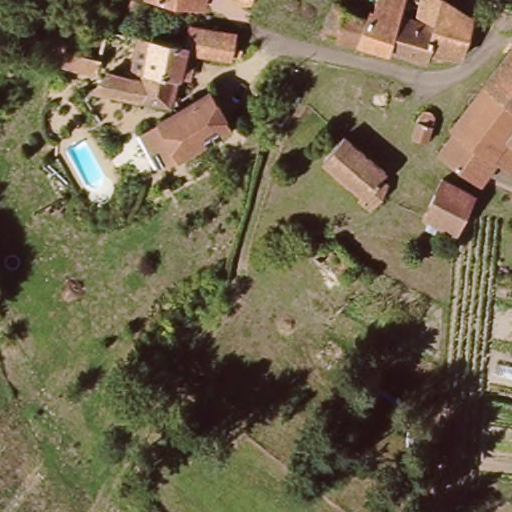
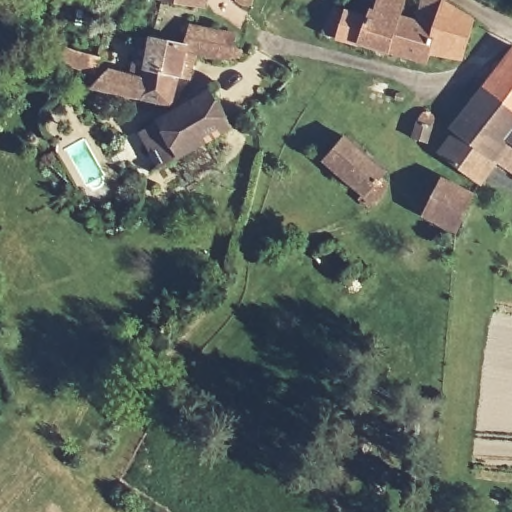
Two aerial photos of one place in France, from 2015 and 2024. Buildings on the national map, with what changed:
unchanged [(125,1),(125,0),(154,0),(150,9),(125,1)]
unchanged [(207,5),(181,0),(208,0),(207,5)]
unchanged [(237,0),(253,0),(252,8),(244,7),(236,6),(237,0)]
unchanged [(471,22),(465,46),(462,59),(434,54),(434,64),(395,52),(328,34),(340,2),(339,0),(342,0),(356,4),(375,10),(378,0),(403,0),(400,16),(417,21),(421,0),(435,0),(471,22)]
unchanged [(101,89),(119,71),(152,77),(154,68),(158,38),(190,44),(197,24),(240,33),(235,59),(189,50),(183,75),(174,105),(101,89)]
unchanged [(103,71),(71,62),(74,47),(108,57),(103,71)]
unchanged [(485,85),(512,49),(512,106),(485,85)]
unchanged [(485,85),(512,106),(512,133),(506,141),(495,157),(457,130),(454,128),(485,85)]
unchanged [(174,161),(156,172),(137,139),(210,97),(231,127),(174,161)]
unchanged [(425,112),(431,111),(438,116),(437,125),(430,141),(415,137),(425,112)]
unchanged [(506,141),(512,146),(512,174),(505,170),(500,177),(488,171),(481,182),(439,155),(457,130),(495,157),(506,141)]
unchanged [(512,133),(512,146),(506,141),(512,133)]
unchanged [(343,139),(346,137),(392,175),(385,183),(390,188),(385,204),(375,210),(368,204),(372,200),(325,163),(334,151),(343,139)]
unchanged [(469,191),(454,227),(425,216),(440,179),(469,191)]
unchanged [(373,265),(354,289),(338,277),(306,251),(334,239),(358,257),(360,255),(373,265)]

